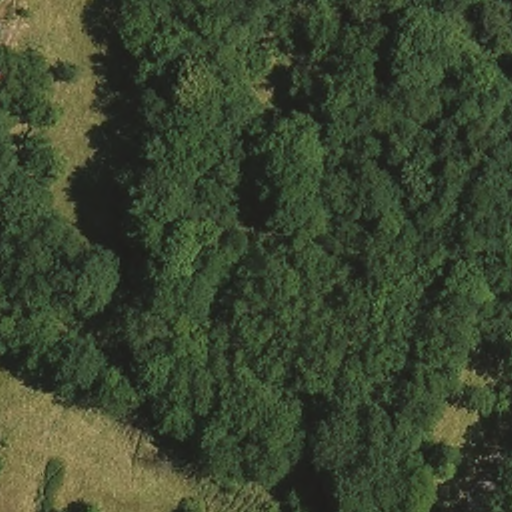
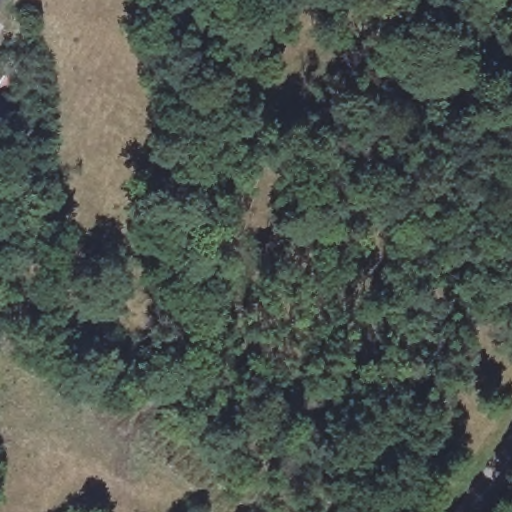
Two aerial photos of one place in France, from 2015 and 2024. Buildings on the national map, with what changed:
unchanged [(0,80),(0,62),(10,73),(0,80)]

